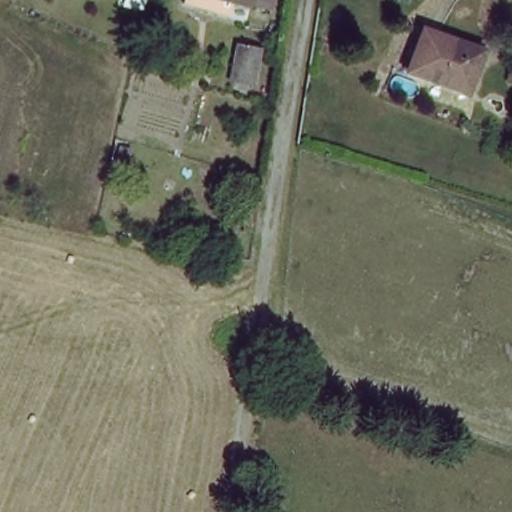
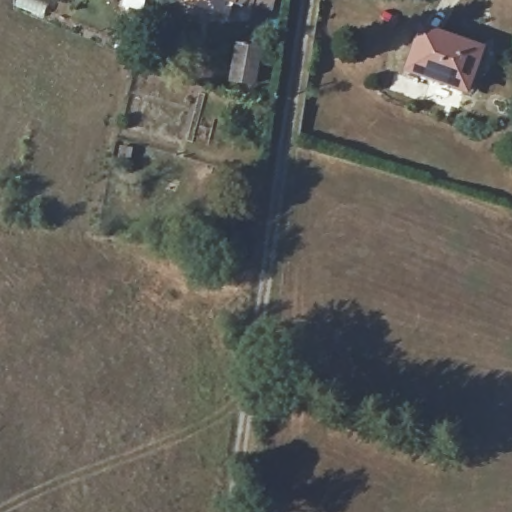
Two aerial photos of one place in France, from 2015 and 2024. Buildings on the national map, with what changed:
unchanged [(231,6),(210,0),(233,0),(231,6)]
unchanged [(409,72),(420,26),(489,48),(476,93),(409,72)]
unchanged [(236,84),(243,49),(263,52),(255,89),(236,84)]

